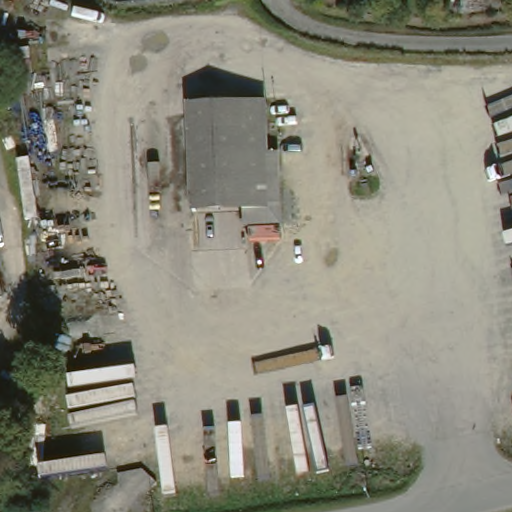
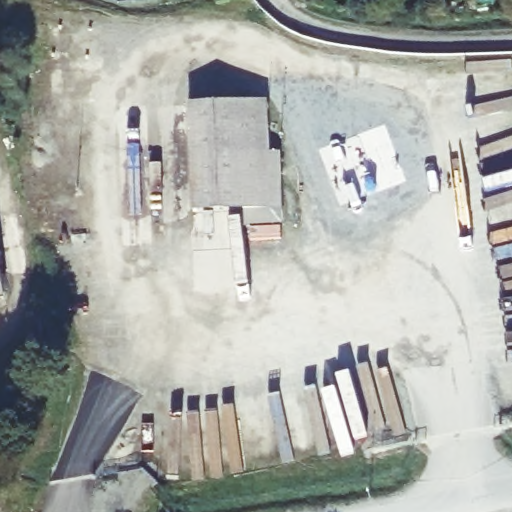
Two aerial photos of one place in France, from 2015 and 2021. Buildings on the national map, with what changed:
unchanged [(264,207),(189,209),(187,102),(264,100),(264,207)]

